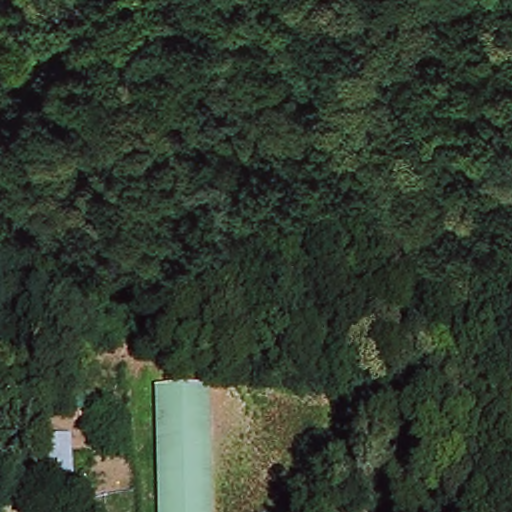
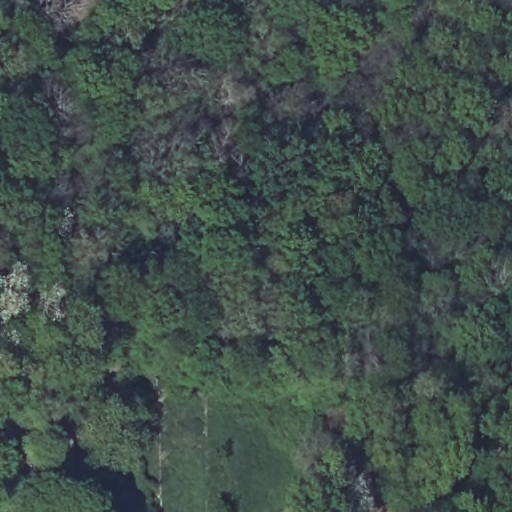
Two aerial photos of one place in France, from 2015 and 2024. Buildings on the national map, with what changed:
demolished [(205,512),(157,512),(153,393),(200,391),(205,512)]

